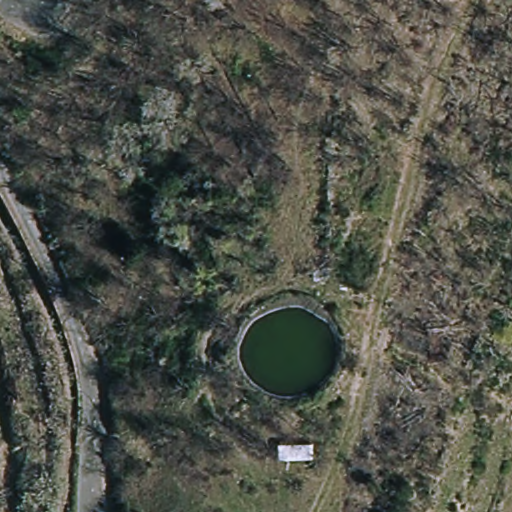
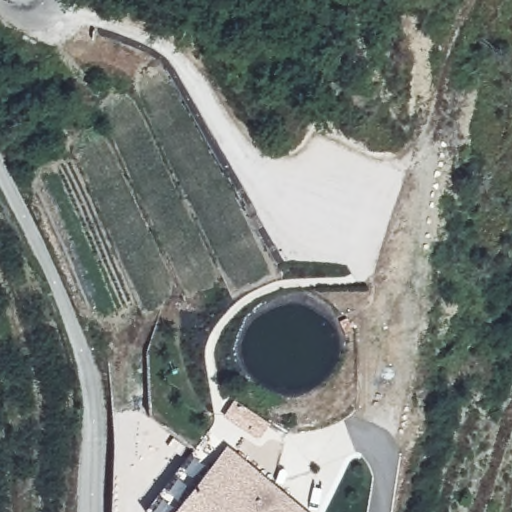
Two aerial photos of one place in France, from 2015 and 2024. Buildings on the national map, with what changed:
new [(209,432),(227,445),(308,512),(146,512),(145,511),(209,432)]

